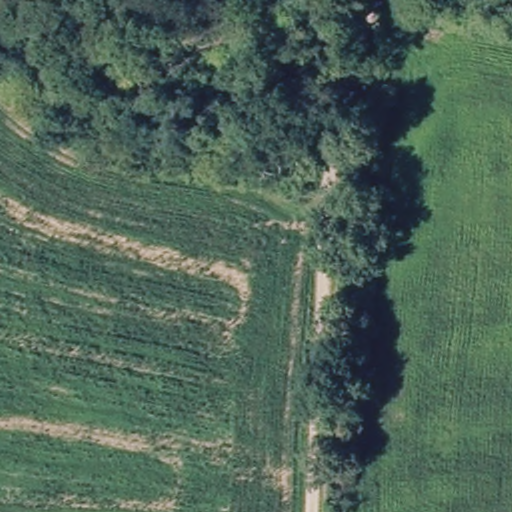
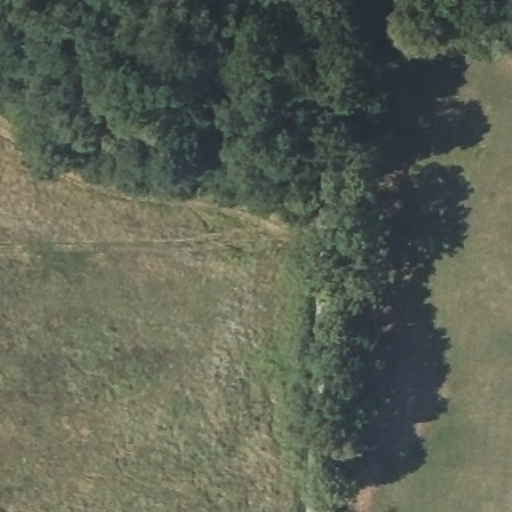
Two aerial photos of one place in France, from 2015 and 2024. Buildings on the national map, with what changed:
[]

